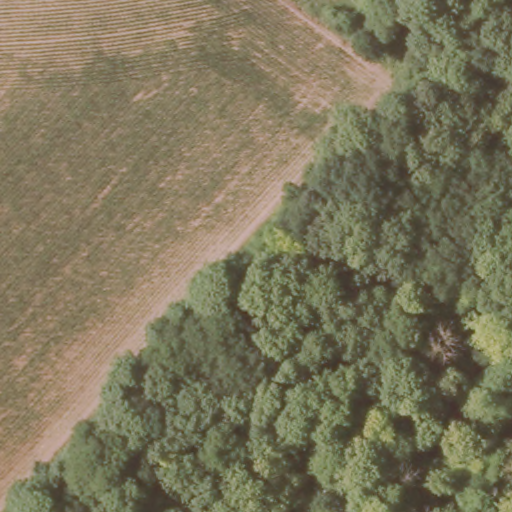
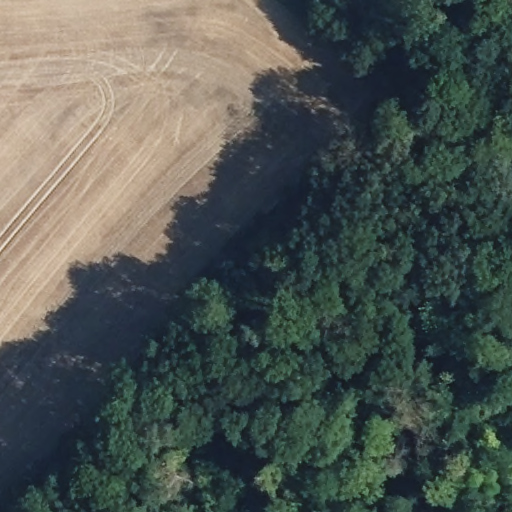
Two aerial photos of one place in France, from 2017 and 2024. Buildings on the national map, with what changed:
[]

